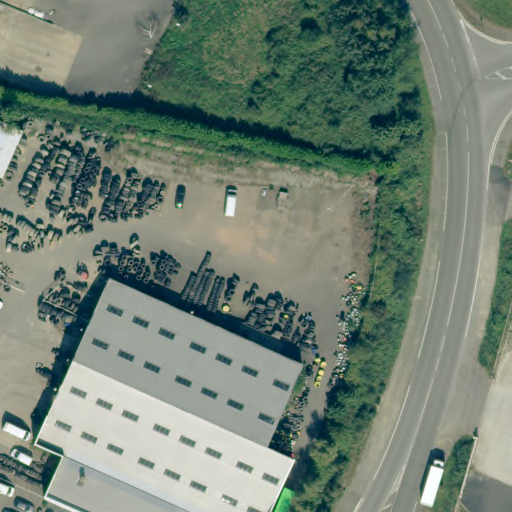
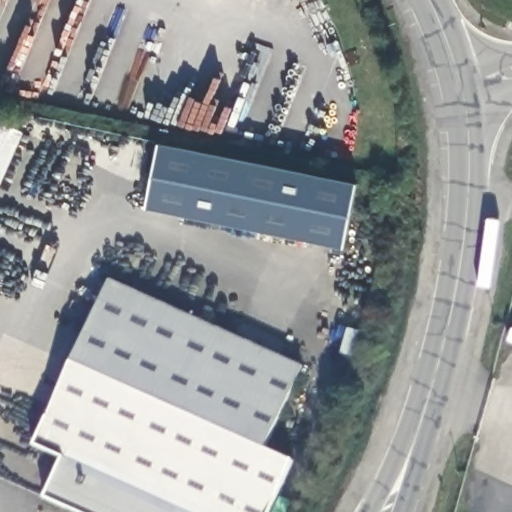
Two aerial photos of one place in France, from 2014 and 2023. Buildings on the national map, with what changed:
new [(0,183),(0,120),(24,131),(0,183)]
new [(357,183),(344,249),(147,208),(133,204),(137,178),(152,181),(160,143),(357,183)]
unchanged [(263,442),(292,456),(267,512),(72,512),(46,500),(59,463),(40,454),(116,277),(302,357),(263,442)]

